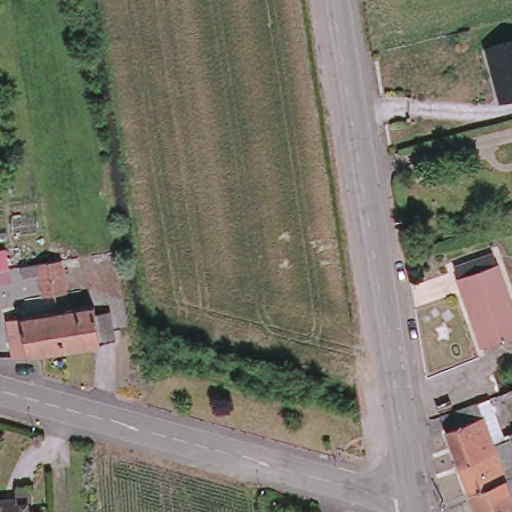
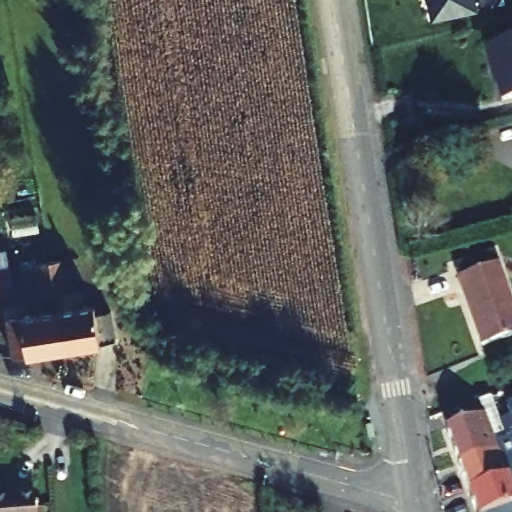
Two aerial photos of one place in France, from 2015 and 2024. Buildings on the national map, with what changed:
new [(479,10),(432,20),(427,0),(477,0),(479,10)]
unchanged [(492,106),(472,52),(512,40),(512,100),(492,106)]
unchanged [(125,262),(99,266),(98,254),(124,250),(125,262)]
unchanged [(39,282),(20,284),(19,271),(51,266),(81,261),(83,273),(65,275),(68,301),(56,302),(43,304),(39,282)]
unchanged [(512,291),(512,338),(491,348),(454,281),(496,261),(512,291)]
unchanged [(58,315),(93,308),(95,317),(111,314),(115,345),(63,354),(58,315)]
unchanged [(8,363),(5,333),(18,331),(18,322),(58,315),(63,354),(8,363)]
unchanged [(506,397),(512,394),(512,416),(506,397)]
unchanged [(484,398),(488,407),(495,407),(507,438),(497,448),(465,459),(447,410),(484,398)]
unchanged [(484,512),(474,484),(465,459),(497,448),(507,438),(512,435),(512,512),(484,512)]
unchanged [(14,492),(36,490),(38,512),(0,512),(0,500),(15,499),(14,492)]

